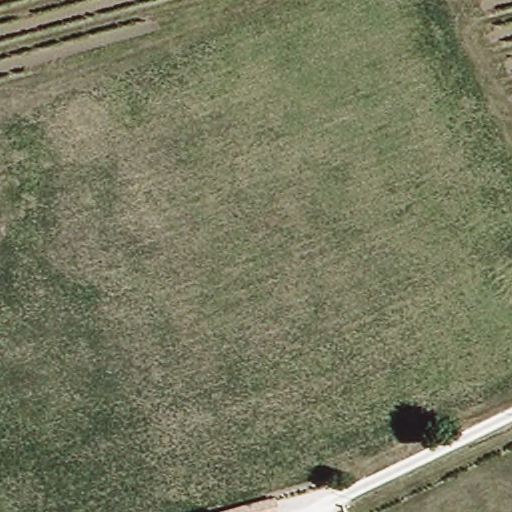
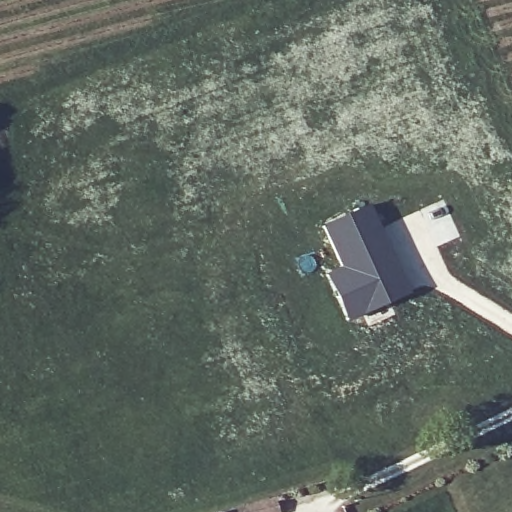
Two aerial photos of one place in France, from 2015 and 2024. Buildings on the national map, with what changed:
new [(370,201),(413,290),(347,322),(324,272),(338,266),(319,224),(370,201)]

